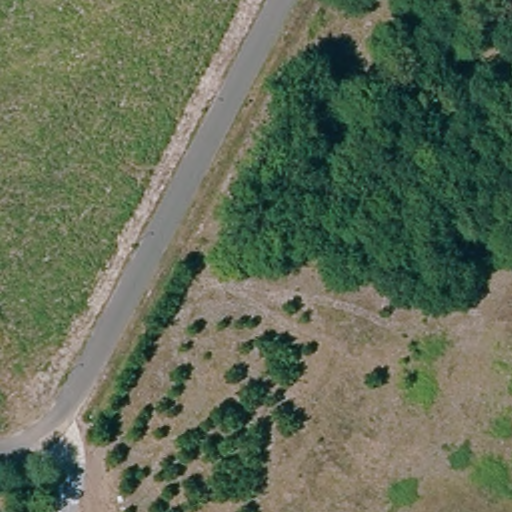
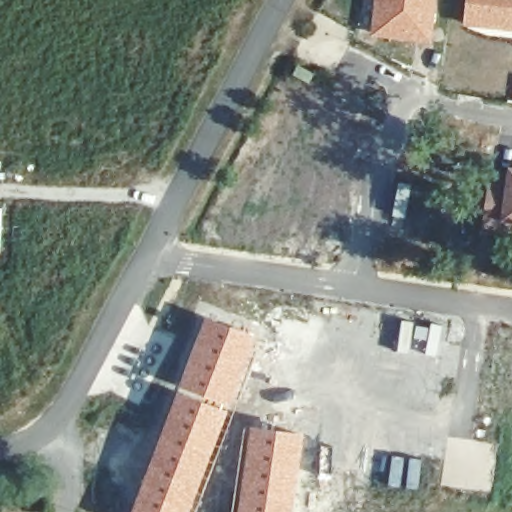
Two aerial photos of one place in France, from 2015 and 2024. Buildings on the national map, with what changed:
new [(369,35),(373,0),(436,0),(431,45),(369,35)]
new [(512,0),(512,31),(461,25),(465,0),(512,0)]
new [(299,66),(316,75),(311,85),(295,76),(299,66)]
new [(504,181),(506,165),(512,166),(512,225),(498,224),(498,226),(481,225),(487,179),(504,181)]
new [(0,243),(0,207),(2,207),(0,243)]
new [(176,387),(205,315),(260,337),(229,420),(208,466),(190,512),(128,512),(176,387)]
new [(235,491),(246,423),(305,432),(296,496),(294,512),(233,512),(235,491)]

